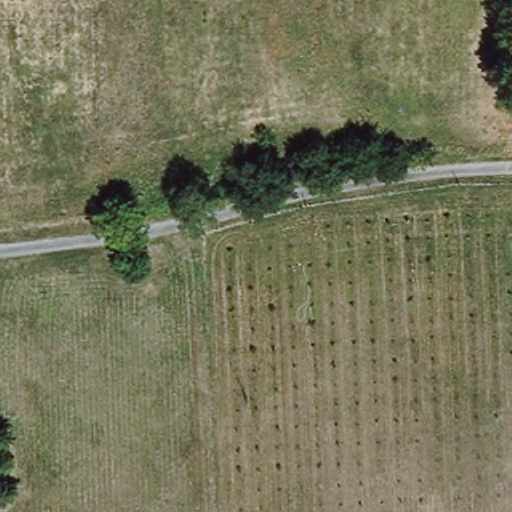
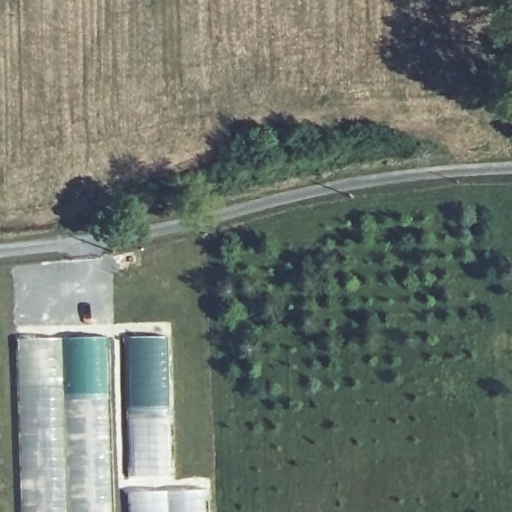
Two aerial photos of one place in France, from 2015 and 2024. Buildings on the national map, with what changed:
new [(111,337),(115,427),(114,512),(21,512),(16,339),(111,337)]
new [(208,490),(208,512),(129,512),(128,492),(208,490)]

